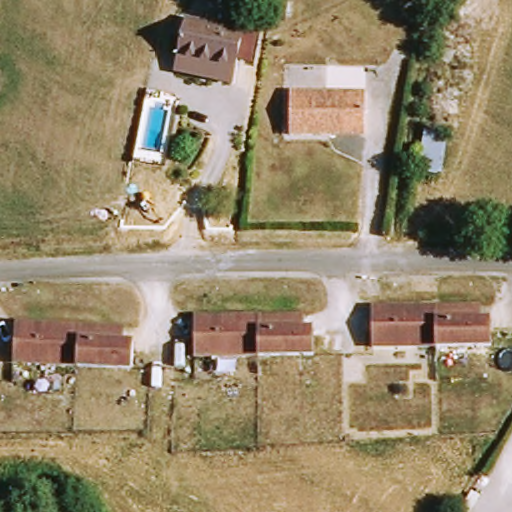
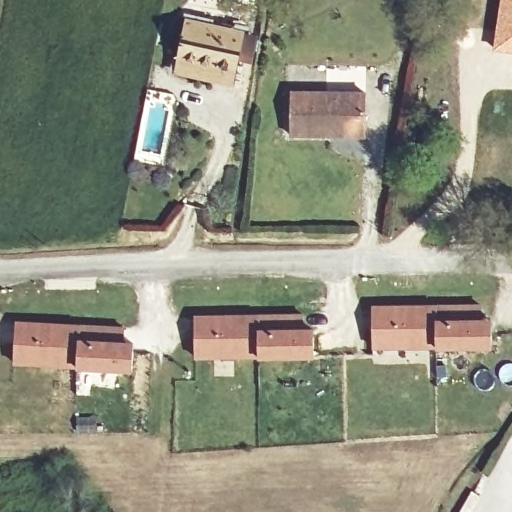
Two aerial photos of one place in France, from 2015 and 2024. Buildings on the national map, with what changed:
new [(512,0),(512,52),(491,49),(499,0),(512,0)]
unchanged [(184,62),(191,21),(247,32),(240,84),(220,81),(182,75),(184,62)]
unchanged [(295,94),(370,95),(368,135),(335,135),(333,138),(295,138),(295,94)]
unchanged [(423,174),(428,131),(452,134),(447,176),(423,174)]
unchanged [(387,309),(488,305),(488,320),(500,319),(500,334),(502,346),(379,349),(377,309),(387,309)]
unchanged [(318,354),(197,359),(195,318),(306,313),(307,329),(317,329),(318,354)]
unchanged [(130,325),(130,341),(141,342),(140,367),(19,362),(20,321),(130,325)]

